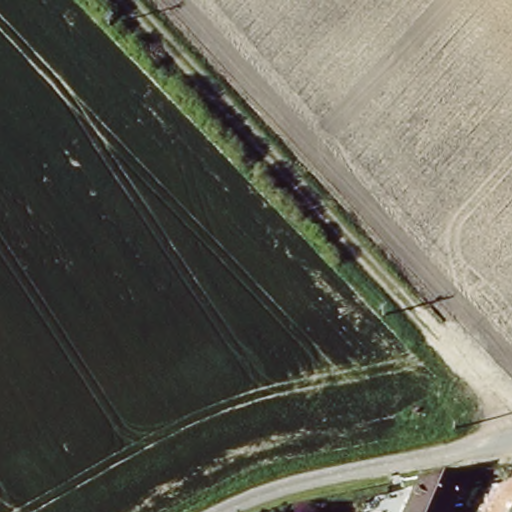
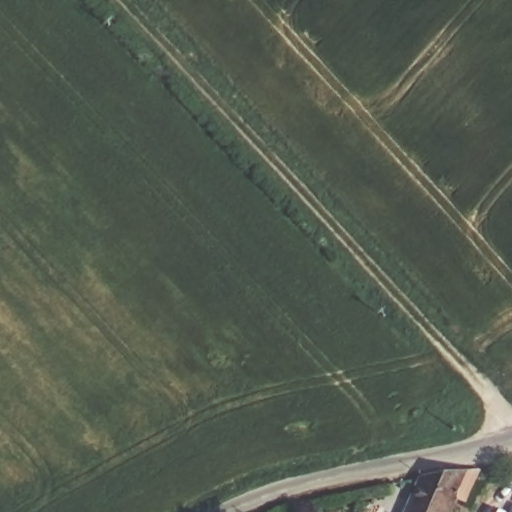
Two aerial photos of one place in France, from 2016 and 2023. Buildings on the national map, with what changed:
unchanged [(427,474),(471,473),(484,470),(469,502),(458,497),(457,497),(450,512),(410,512),(427,474)]
unchanged [(512,506),(512,512),(510,512),(512,506)]

